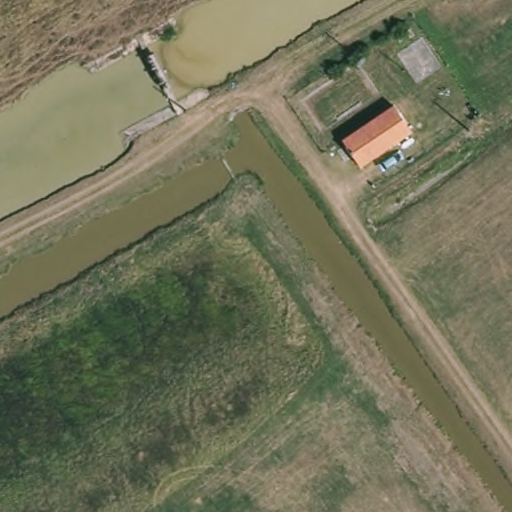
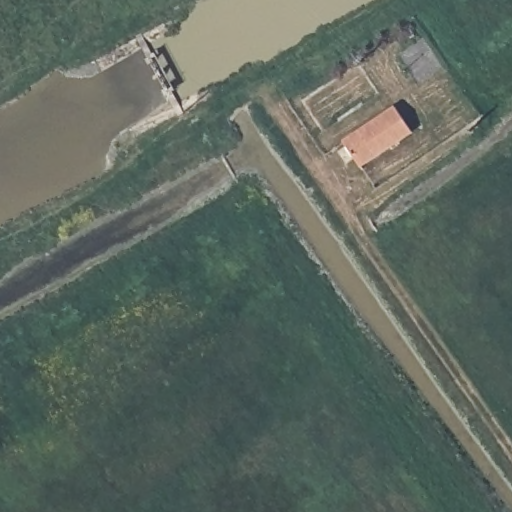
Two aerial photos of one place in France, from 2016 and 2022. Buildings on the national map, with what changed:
unchanged [(396,114),(412,140),(359,173),(343,147),(396,114)]

